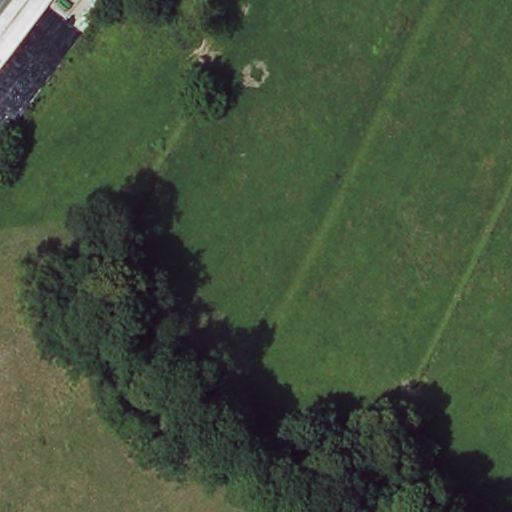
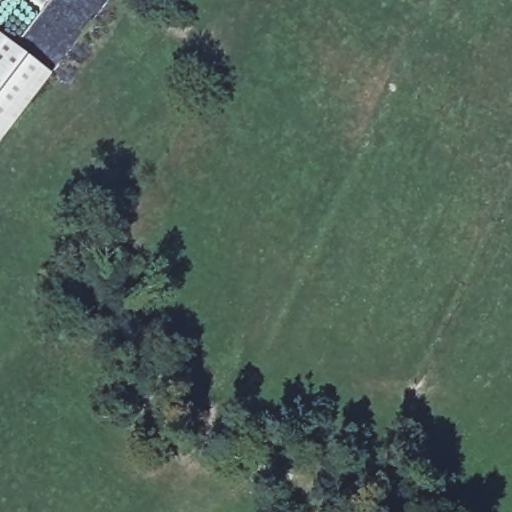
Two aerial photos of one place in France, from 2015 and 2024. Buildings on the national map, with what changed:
unchanged [(0,3),(0,0),(2,0),(0,3)]
new [(0,144),(0,36),(53,74),(0,144)]

